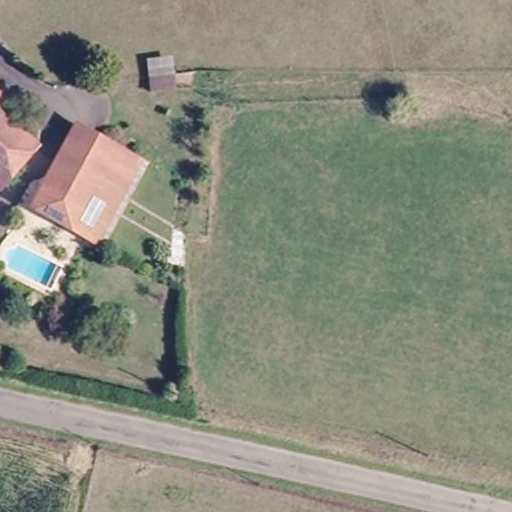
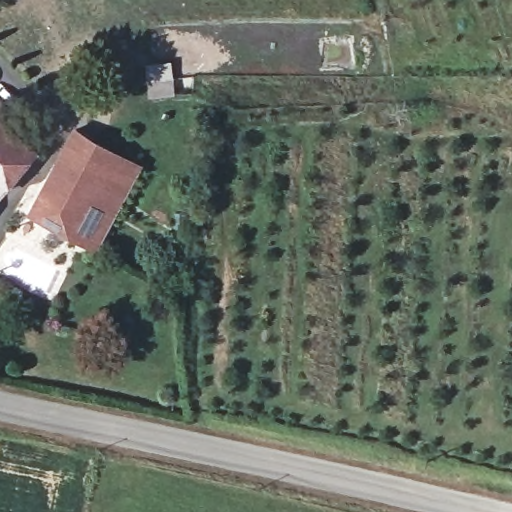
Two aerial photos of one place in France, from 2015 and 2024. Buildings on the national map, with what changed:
unchanged [(43,152),(0,195),(0,113),(43,152)]
unchanged [(86,205),(55,184),(62,172),(82,141),(114,163),(86,205)]
unchanged [(55,184),(86,205),(114,163),(138,178),(88,253),(71,242),(32,217),(39,207),(55,184)]

